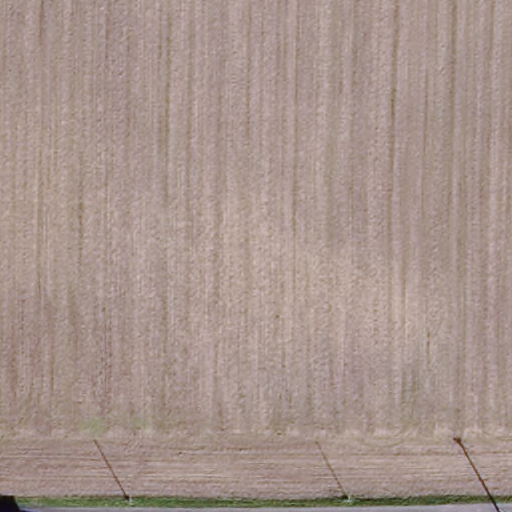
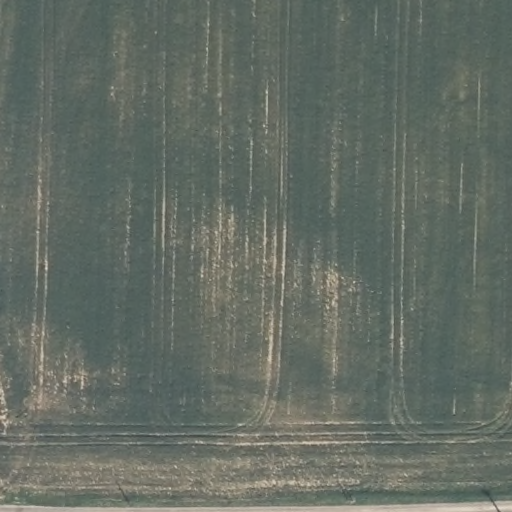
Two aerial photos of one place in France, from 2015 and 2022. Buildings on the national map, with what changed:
[]

